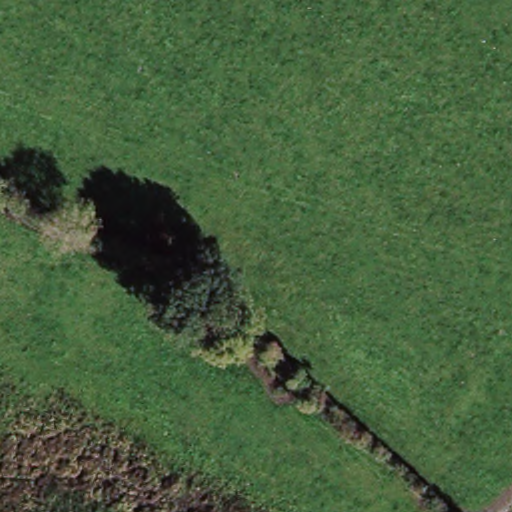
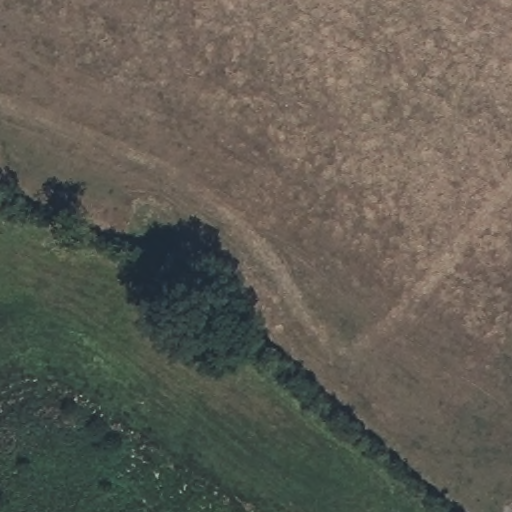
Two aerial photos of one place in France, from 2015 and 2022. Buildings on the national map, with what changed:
[]

